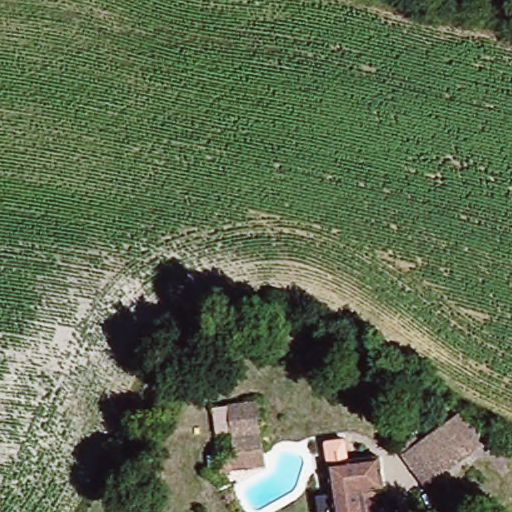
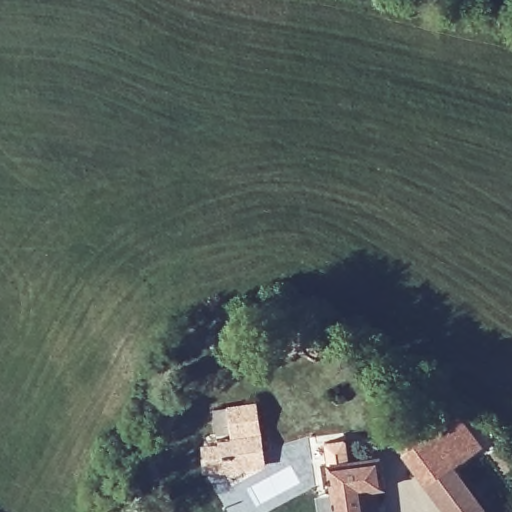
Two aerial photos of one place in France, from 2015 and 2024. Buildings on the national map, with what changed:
unchanged [(219,472),(217,460),(213,442),(227,441),(226,429),(224,405),(253,402),(255,425),(259,452),(260,464),(219,472)]
unchanged [(418,434),(422,439),(453,417),(473,449),(425,480),(401,444),(418,434)]
unchanged [(318,443),(337,439),(341,458),(369,453),(375,482),(371,483),(375,512),(332,512),(318,443)]
new [(489,512),(444,512),(426,487),(455,466),(489,512)]

